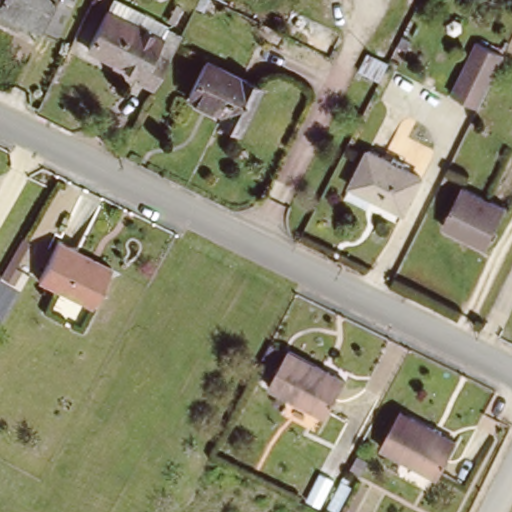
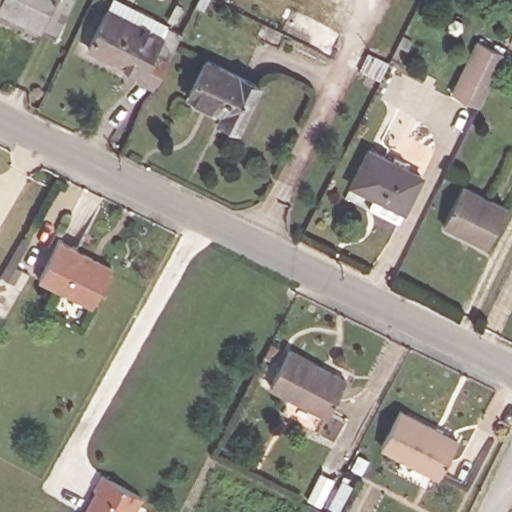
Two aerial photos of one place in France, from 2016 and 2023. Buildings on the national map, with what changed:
unchanged [(1,2),(0,1),(0,0),(73,0),(53,39),(0,10),(0,4),(1,2)]
unchanged [(144,73),(93,46),(113,7),(168,34),(157,55),(172,62),(158,87),(141,78),(144,73)]
unchanged [(465,21),(465,30),(458,33),(453,29),(453,21),(460,18),(465,21)]
unchanged [(486,26),(512,39),(512,42),(481,106),(454,91),(486,26)]
unchanged [(187,95),(207,58),(260,85),(238,128),(218,118),(222,112),(187,95)]
unchanged [(377,191),(375,194),(352,183),(369,148),(422,174),(405,205),(377,191)]
unchanged [(490,244),(447,222),(465,185),(509,206),(490,244)]
unchanged [(42,287),(60,247),(115,273),(95,313),(42,287)]
unchanged [(272,386),(291,351),(348,383),(330,418),(272,386)]
unchanged [(387,446),(403,412),(462,440),(446,474),(387,446)]
new [(143,497),(135,512),(83,512),(102,476),(143,497)]

